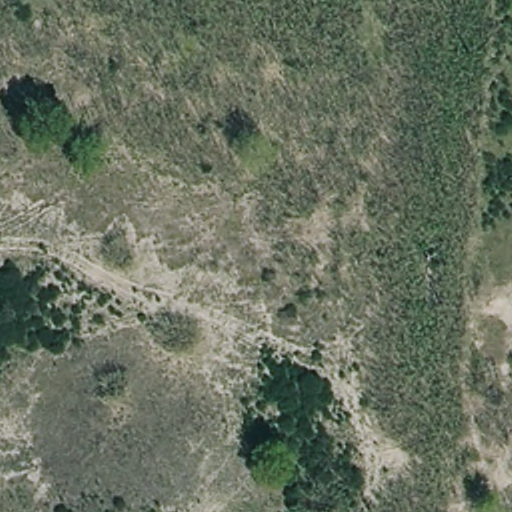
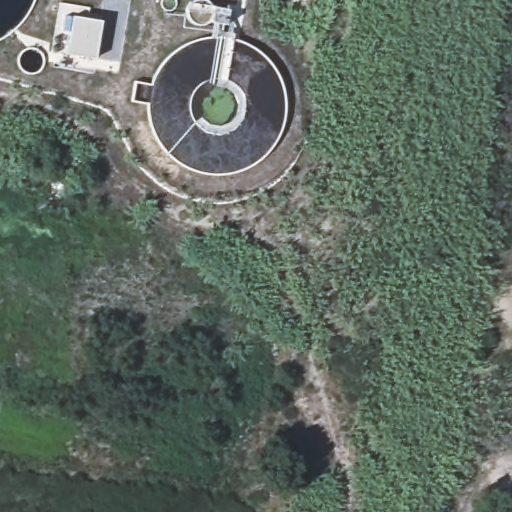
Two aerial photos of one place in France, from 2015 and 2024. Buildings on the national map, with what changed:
new [(101,20),(95,60),(65,54),(71,16),(101,20)]

